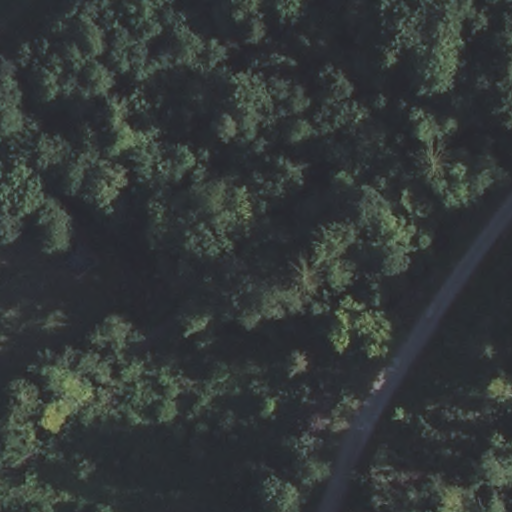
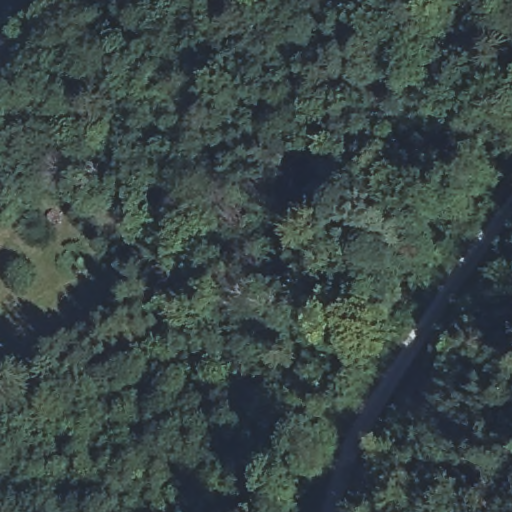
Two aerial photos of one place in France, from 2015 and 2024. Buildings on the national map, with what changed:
[]

